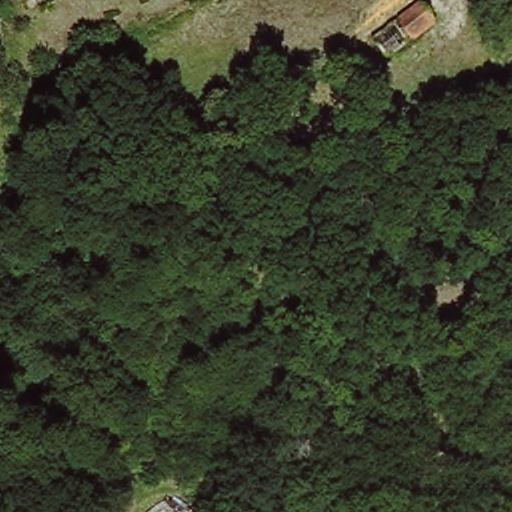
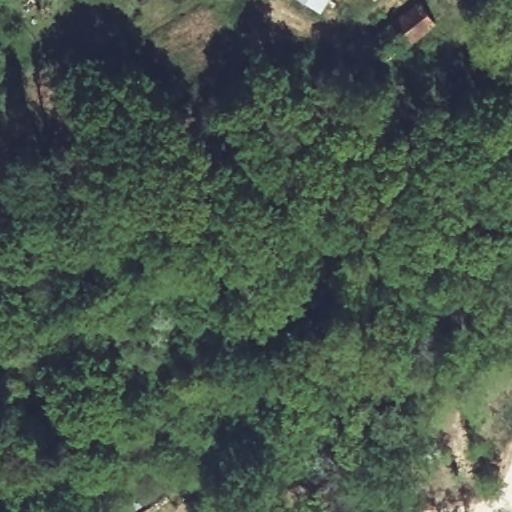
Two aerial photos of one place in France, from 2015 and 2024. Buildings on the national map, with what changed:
new [(321,12),(303,0),(328,0),(321,12)]
unchanged [(419,9),(434,30),(386,64),(371,44),(419,9)]

